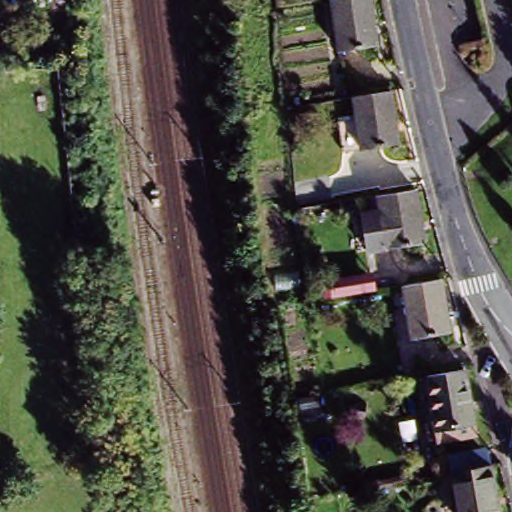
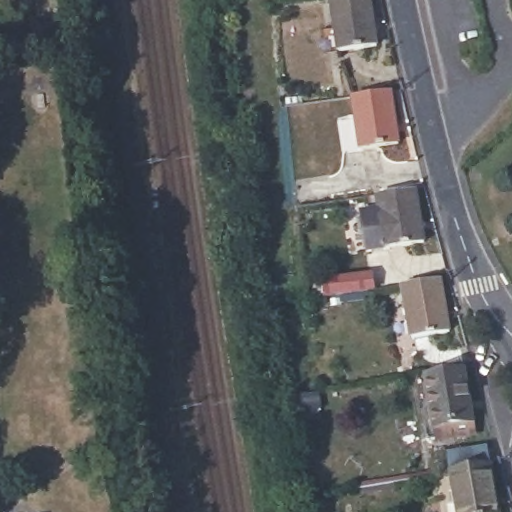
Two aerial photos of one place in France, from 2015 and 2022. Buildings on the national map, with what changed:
unchanged [(370,50),(333,55),(327,0),(365,0),(370,50)]
unchanged [(400,148),(364,152),(361,152),(342,154),(338,122),(358,121),(355,92),(393,89),(400,148)]
unchanged [(416,186),(425,245),(405,249),(366,255),(360,211),(381,209),(379,192),(416,186)]
unchanged [(451,335),(413,341),(405,282),(442,276),(451,335)]
unchanged [(425,398),(421,380),(442,376),(443,376),(468,373),(476,426),(478,440),(440,445),(437,428),(430,430),(425,398)]
unchanged [(454,512),(448,476),(485,470),(493,512),(454,512)]

